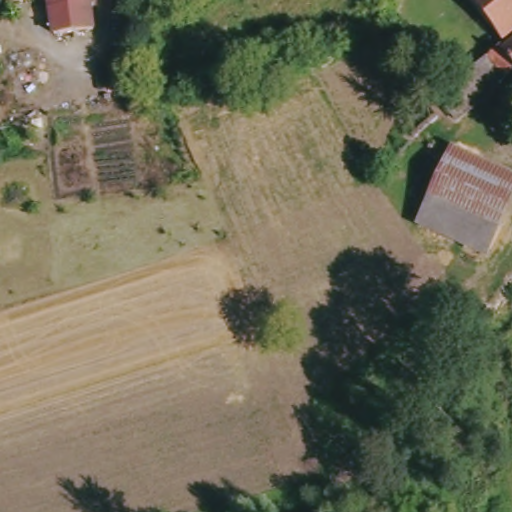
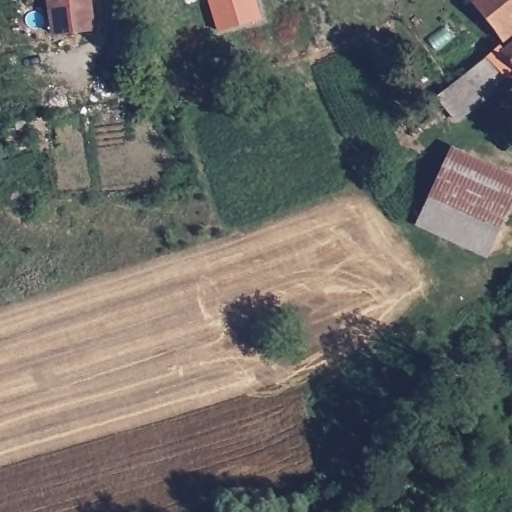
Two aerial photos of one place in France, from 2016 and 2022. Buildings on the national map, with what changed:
unchanged [(54,34),(49,0),(90,0),(94,29),(54,34)]
new [(224,30),(215,0),(255,0),(260,19),(224,30)]
unchanged [(469,0),(512,0),(512,23),(497,35),(469,0)]
unchanged [(499,73),(481,51),(495,40),(500,44),(512,34),(512,62),(499,73)]
unchanged [(499,73),(494,78),(497,81),(452,116),(432,90),(447,78),(481,51),(499,73)]
unchanged [(415,219),(452,140),(512,168),(512,197),(487,252),(415,219)]

